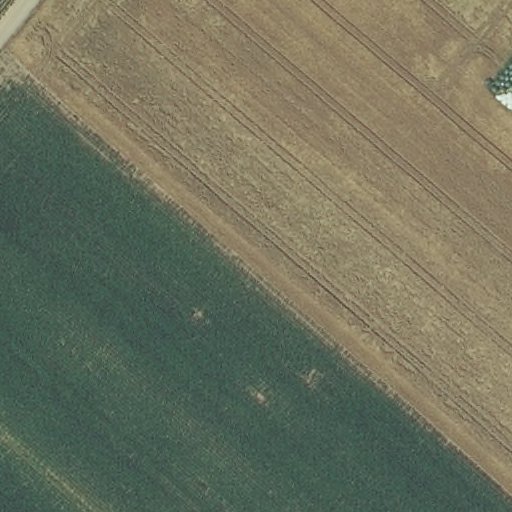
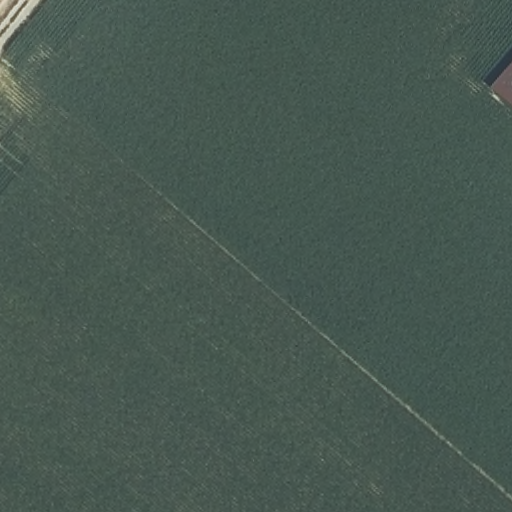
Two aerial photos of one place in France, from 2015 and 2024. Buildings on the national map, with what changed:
[]

